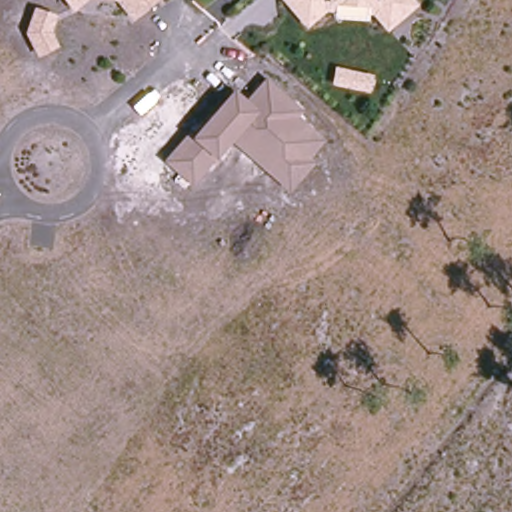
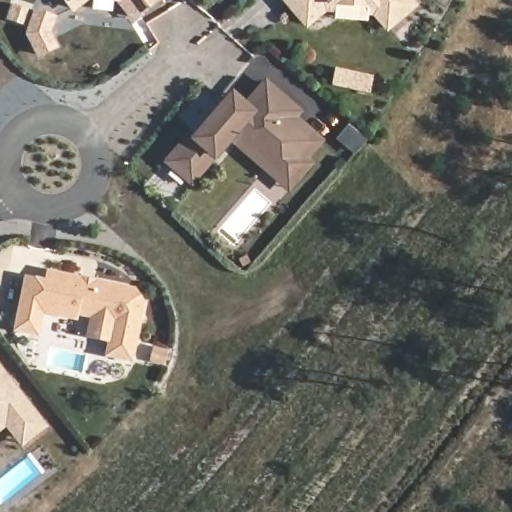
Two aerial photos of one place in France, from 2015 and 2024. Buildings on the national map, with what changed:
unchanged [(132,21),(115,4),(86,1),(72,15),(61,0),(159,0),(132,21)]
unchanged [(277,0),(409,0),(415,7),(384,34),(368,15),(331,16),(325,12),(302,30),(277,0)]
unchanged [(50,32),(59,50),(38,61),(24,34),(31,9),(53,15),(50,32)]
new [(371,90),(354,87),(339,86),(340,71),(355,73),(373,75),(371,90)]
unchanged [(308,157),(315,162),(286,192),(230,140),(191,183),(164,159),(185,134),(191,138),(231,92),(245,104),(266,81),(300,112),(296,116),(325,140),(308,157)]
new [(104,356),(106,342),(84,337),(88,318),(77,316),(77,321),(41,314),(37,336),(13,331),(25,274),(42,277),(44,269),(135,287),(145,302),(132,361),(104,356)]
new [(48,425),(30,438),(11,414),(0,423),(0,364),(48,425)]
new [(11,414),(30,438),(25,442),(10,422),(0,430),(0,423),(11,414)]

